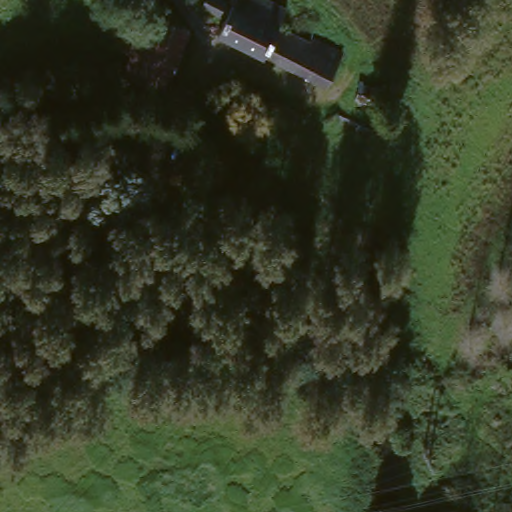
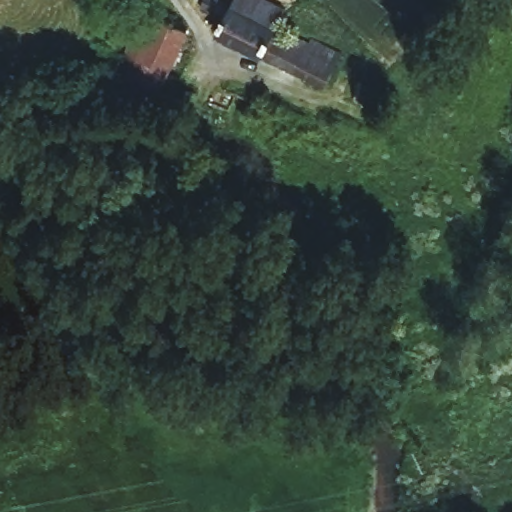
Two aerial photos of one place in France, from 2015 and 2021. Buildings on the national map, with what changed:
unchanged [(208,0),(216,0),(231,7),(236,0),(258,0),(284,12),(275,35),(309,50),(306,59),(316,65),(329,71),(321,89),(216,41),(223,20),(203,10),(208,0)]
unchanged [(122,56),(140,15),(154,21),(134,61),(140,64),(129,85),(119,80),(122,56)]
unchanged [(149,97),(129,85),(140,64),(134,61),(154,21),(180,32),(154,87),(181,98),(176,111),(149,99),(149,97)]
unchanged [(381,91),(377,106),(354,100),(358,82),(381,91)]

